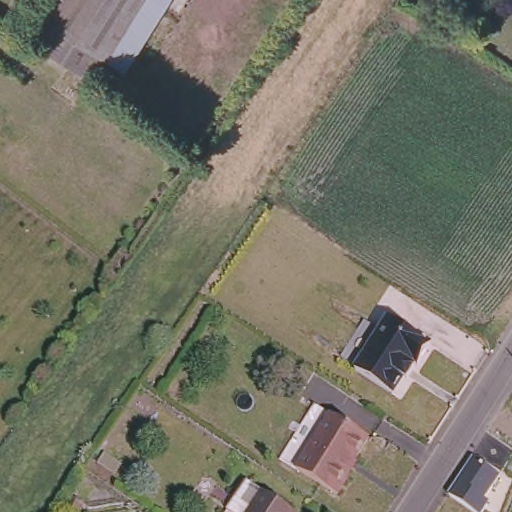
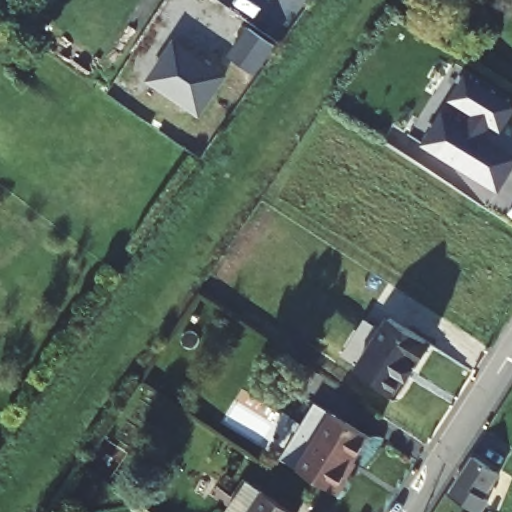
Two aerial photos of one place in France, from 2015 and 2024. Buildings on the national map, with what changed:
demolished [(55,0),(136,0),(93,69),(37,29),(55,0)]
demolished [(136,0),(168,0),(124,71),(100,57),(136,0)]
new [(274,46),(256,74),(229,55),(249,27),(274,46)]
new [(228,77),(201,117),(146,80),(176,37),(228,77)]
new [(499,192),(423,144),(444,110),(466,123),(473,112),(452,98),(464,74),(512,100),(512,112),(503,130),(491,124),(486,135),(512,153),(512,168),(499,192)]
unchanged [(358,371),(392,318),(433,345),(420,365),(416,362),(413,367),(418,369),(409,381),(406,378),(394,395),(358,371)]
unchanged [(374,445),(348,486),(351,488),(343,502),(286,465),(321,410),(374,445)]
unchanged [(499,473),(485,495),(491,498),(482,512),(476,512),(449,493),(471,456),(499,473)]
unchanged [(248,482),(266,493),(293,512),(227,512),(229,509),(248,482)]

